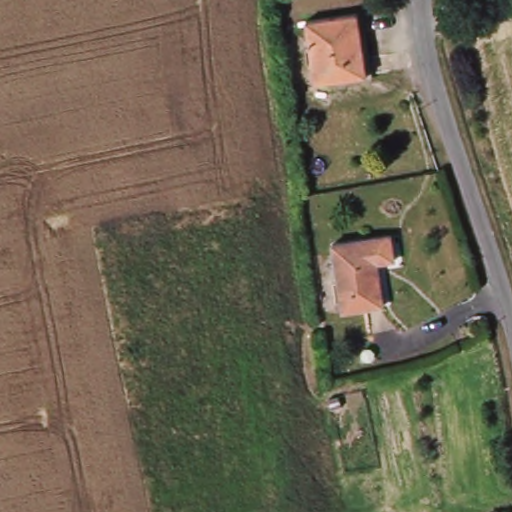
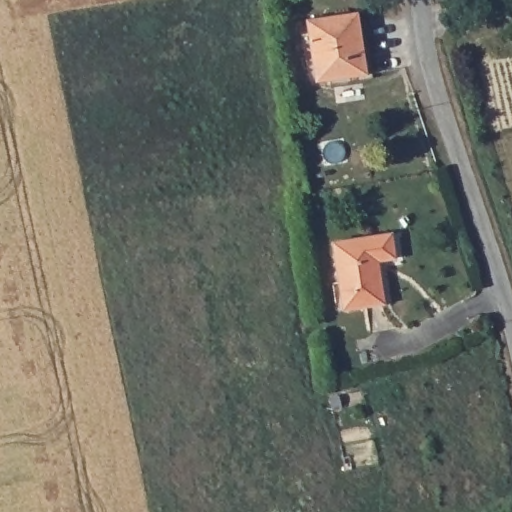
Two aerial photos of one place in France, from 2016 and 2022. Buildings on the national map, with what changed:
unchanged [(315,80),(313,14),(365,11),(369,76),(315,80)]
unchanged [(346,305),(337,243),(390,235),(393,257),(381,257),(388,299),(346,305)]

